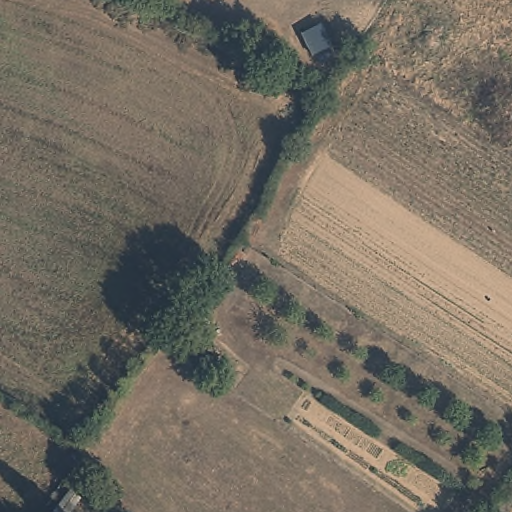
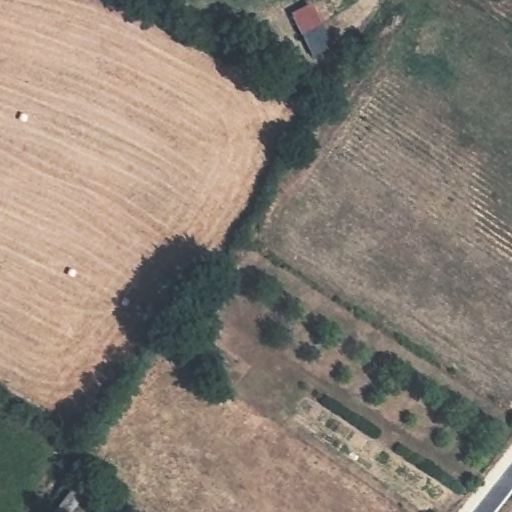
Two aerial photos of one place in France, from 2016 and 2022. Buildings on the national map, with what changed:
[]

